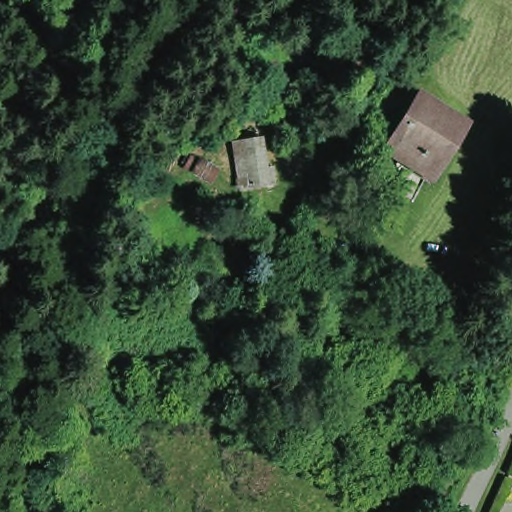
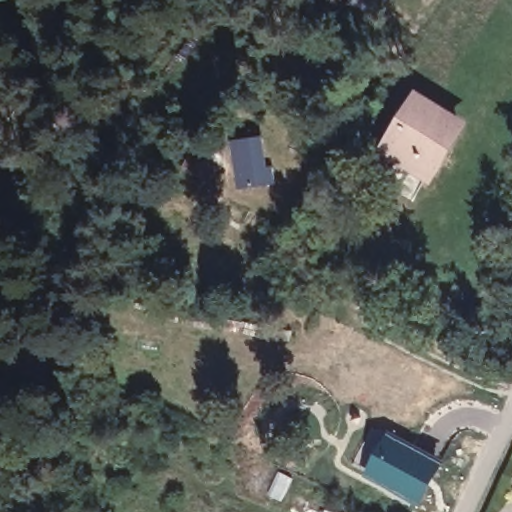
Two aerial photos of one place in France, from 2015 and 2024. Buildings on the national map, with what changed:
unchanged [(416,99),(458,126),(435,160),(427,175),(384,149),(394,132),(416,99)]
unchanged [(265,182),(236,187),(229,141),(258,136),(263,168),(270,167),(272,180),(265,182)]
unchanged [(216,167),(207,183),(186,171),(195,155),(216,167)]
new [(364,477),(389,431),(446,461),(421,507),(364,477)]

